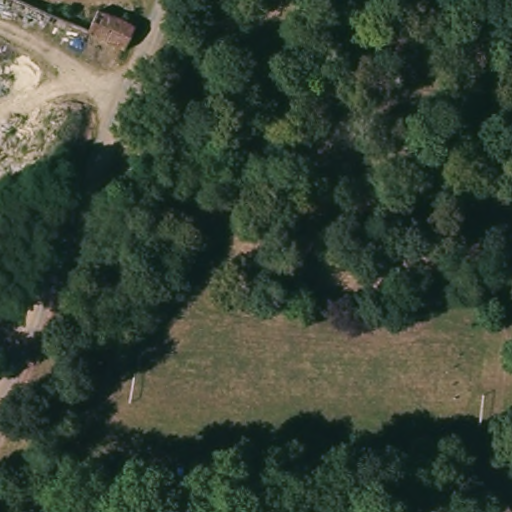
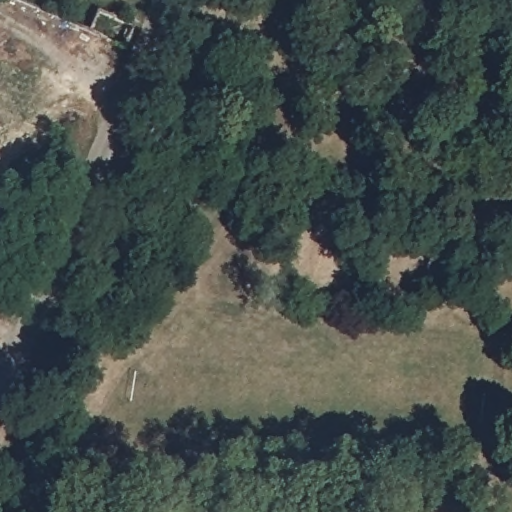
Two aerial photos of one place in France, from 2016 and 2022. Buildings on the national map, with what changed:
unchanged [(100,14),(136,31),(126,54),(89,38),(100,14)]

